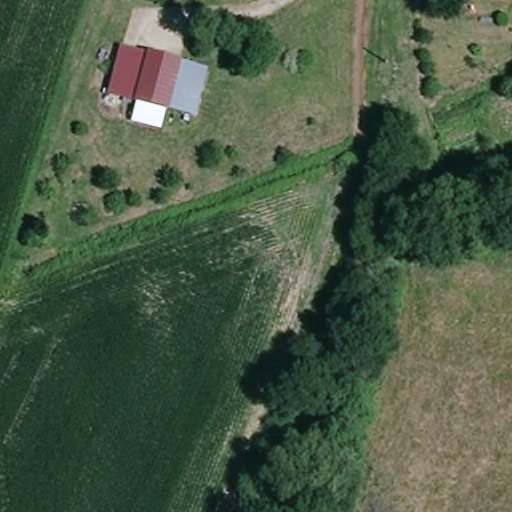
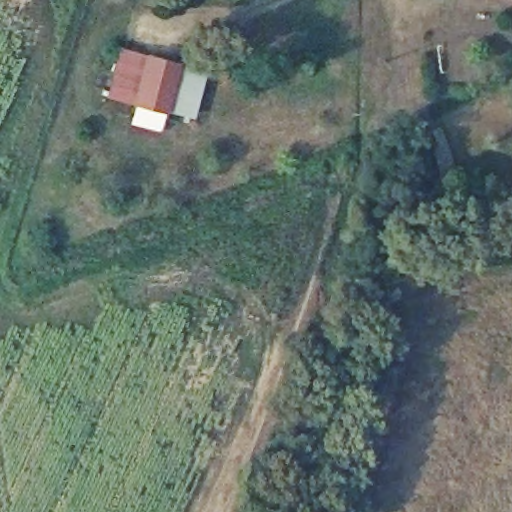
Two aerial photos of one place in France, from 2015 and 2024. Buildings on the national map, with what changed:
unchanged [(139,103),(114,96),(127,47),(152,54),(139,103)]
unchanged [(138,119),(143,104),(139,103),(152,54),(184,62),(172,110),(171,112),(169,111),(165,127),(138,119)]
unchanged [(211,70),(198,117),(172,110),(184,62),(211,70)]

